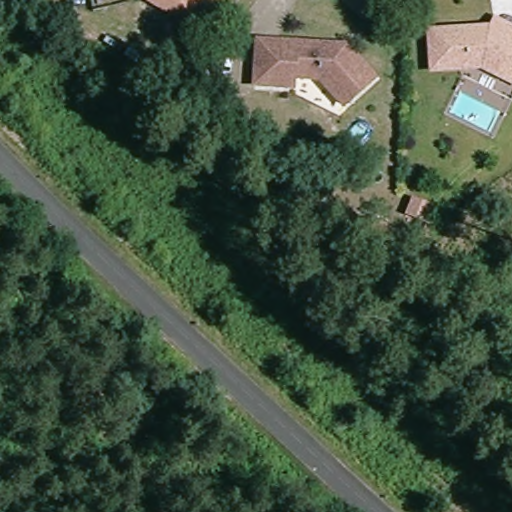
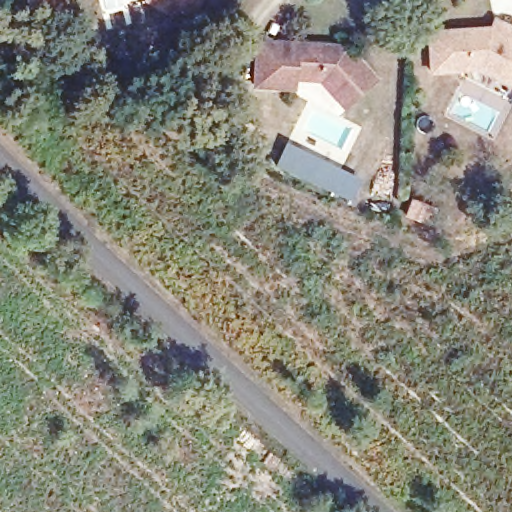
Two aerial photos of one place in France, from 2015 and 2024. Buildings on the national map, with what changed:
new [(39,16),(23,0),(57,0),(39,16)]
unchanged [(183,21),(146,0),(195,0),(183,21)]
unchanged [(508,79),(478,67),(429,70),(426,30),(493,26),(494,17),(512,27),(512,80),(508,79)]
unchanged [(351,43),(379,73),(350,97),(321,74),(294,72),(294,83),(255,81),(255,38),(351,43)]
new [(275,165),(285,143),(360,177),(349,200),(275,165)]
unchanged [(421,172),(447,179),(443,194),(417,187),(421,172)]
new [(409,201),(435,208),(431,223),(405,216),(409,201)]

